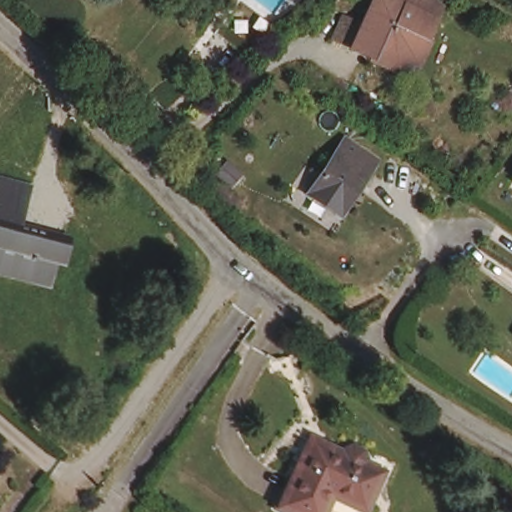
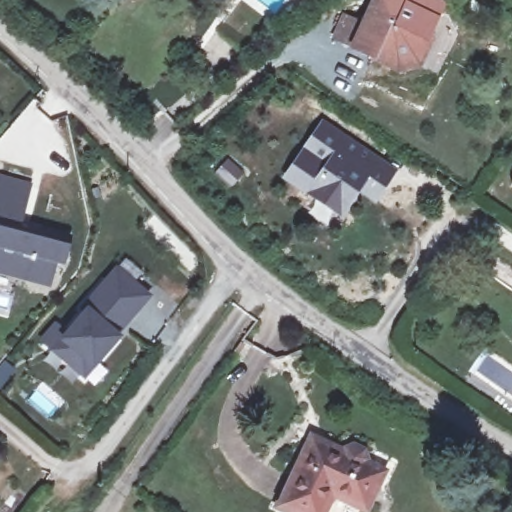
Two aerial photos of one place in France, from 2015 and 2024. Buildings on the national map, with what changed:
unchanged [(242,0),(271,21),(246,55),(216,32),(241,0),(242,0)]
unchanged [(364,24),(375,0),(433,0),(436,1),(429,15),(436,18),(428,36),(432,39),(419,65),(399,70),(371,57),(372,55),(353,46),(334,38),(345,15),(364,24)]
unchanged [(314,196),(344,154),(353,141),(374,155),(365,167),(376,175),(346,218),(314,196)]
unchanged [(30,186),(26,201),(19,230),(41,235),(43,230),(65,236),(59,261),(55,260),(50,281),(32,276),(31,279),(0,271),(0,179),(30,186)]
new [(118,266),(151,297),(118,334),(121,337),(93,369),(81,380),(50,350),(38,340),(55,322),(66,333),(84,312),(79,307),(118,266)]
unchanged [(342,452),(344,447),(354,444),(366,450),(369,460),(368,464),(384,472),(366,510),(333,493),(324,512),(295,512),(280,505),(311,438),(342,452)]

